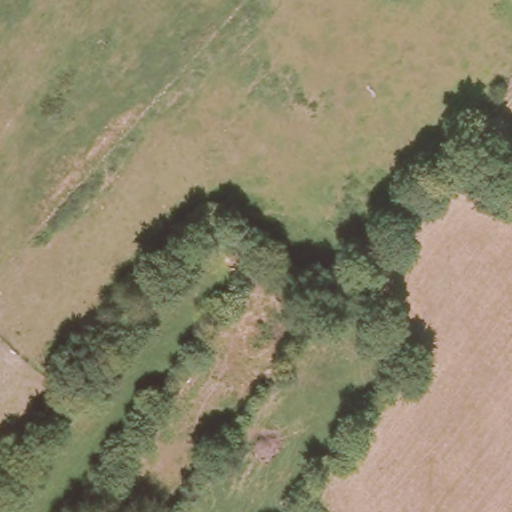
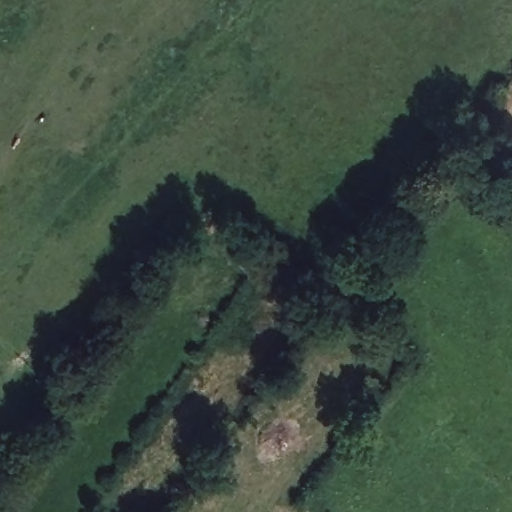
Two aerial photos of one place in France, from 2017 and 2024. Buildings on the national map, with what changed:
[]

